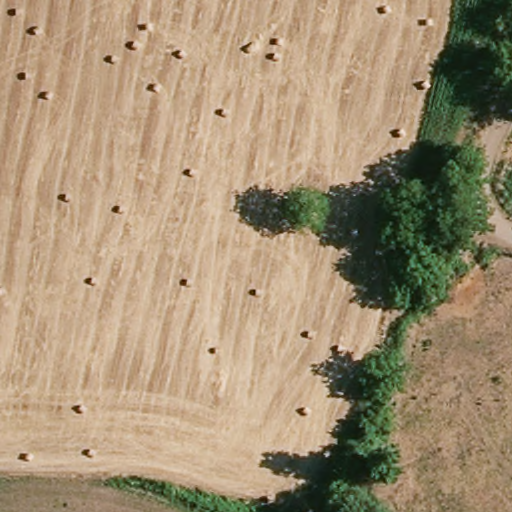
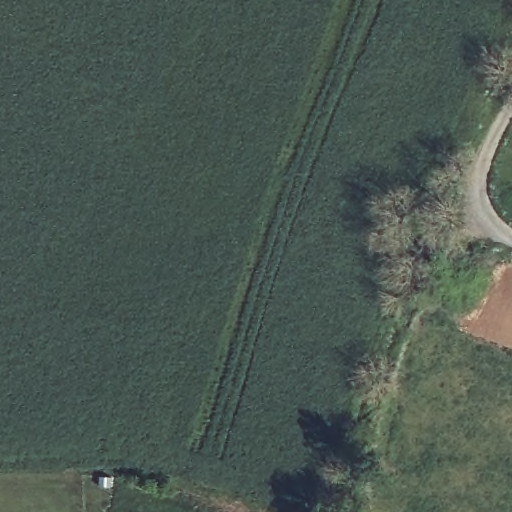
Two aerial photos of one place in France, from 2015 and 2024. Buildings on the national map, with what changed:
[]

